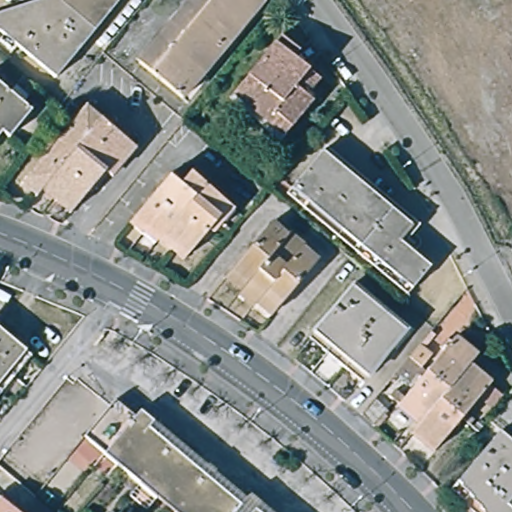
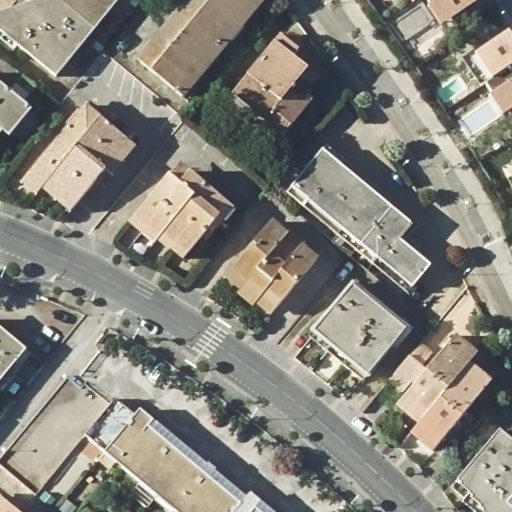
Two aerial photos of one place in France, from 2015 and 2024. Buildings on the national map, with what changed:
unchanged [(57,79),(0,33),(0,15),(47,0),(121,0),(57,79)]
unchanged [(140,57),(188,0),(262,0),(184,95),(140,57)]
new [(442,30),(427,9),(430,7),(425,0),(483,0),(483,1),(442,30)]
new [(503,120),(488,98),(491,96),(485,87),(492,81),(475,56),(510,32),(512,35),(512,113),(503,120)]
unchanged [(233,96),(282,37),(300,52),(288,67),(311,85),(303,95),(312,102),(292,128),(274,114),(267,122),(233,96)]
unchanged [(32,113),(10,140),(2,133),(0,135),(0,87),(8,94),(23,77),(37,88),(23,105),(32,113)]
unchanged [(86,107),(137,149),(113,178),(106,172),(70,215),(42,192),(37,197),(22,185),(86,107)]
unchanged [(293,187),(322,152),(412,227),(400,242),(430,267),(412,289),(293,187)]
new [(508,173),(512,171),(512,180),(508,173)]
unchanged [(198,238),(179,260),(167,251),(165,252),(155,244),(152,244),(141,236),(139,236),(126,226),(157,188),(167,195),(180,180),(222,215),(200,240),(198,238)]
unchanged [(267,322),(253,311),(250,313),(235,301),(237,297),(221,284),(265,229),(312,265),(267,322)]
unchanged [(315,334),(357,282),(412,326),(369,378),(315,334)]
unchanged [(0,384),(0,330),(27,352),(0,384)]
unchanged [(412,435),(420,425),(399,407),(456,338),(477,356),(470,366),(492,384),(435,453),(412,435)]
unchanged [(115,402),(240,507),(236,512),(174,512),(85,438),(115,402)]
unchanged [(482,507),(470,497),(471,495),(458,483),(485,450),(480,446),(483,441),(490,445),(500,432),(512,442),(512,512),(485,512),(481,509),(482,507)]
unchanged [(19,512),(0,512),(0,503),(3,499),(19,512)]
unchanged [(258,512),(256,512),(257,511),(258,512)]

